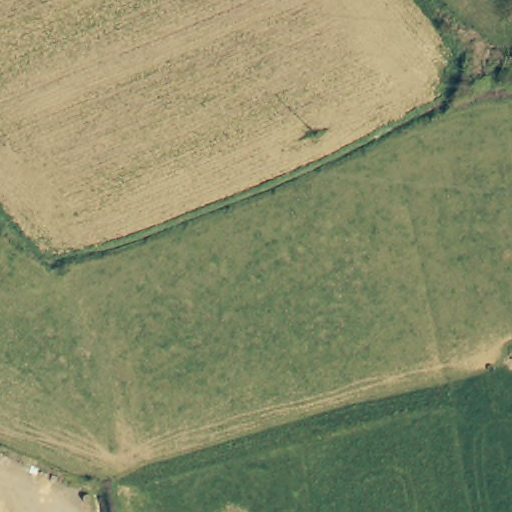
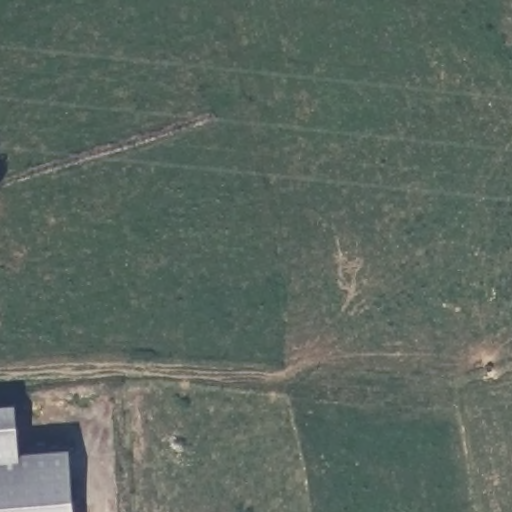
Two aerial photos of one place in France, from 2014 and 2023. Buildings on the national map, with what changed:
new [(18,454),(68,450),(73,512),(0,512),(0,406),(16,405),(18,454)]

